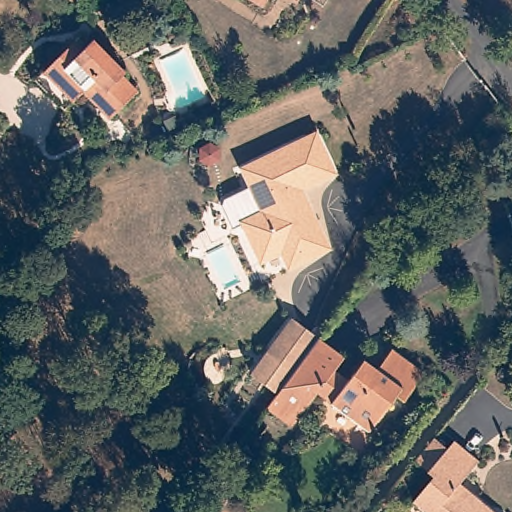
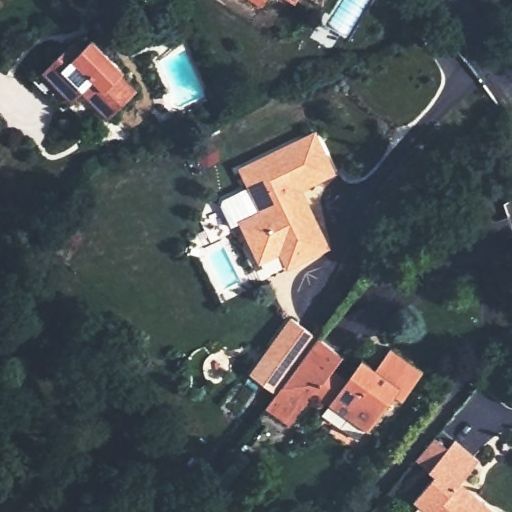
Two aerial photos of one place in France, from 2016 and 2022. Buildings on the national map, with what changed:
unchanged [(248,0),(262,0),(258,7),(248,0)]
unchanged [(290,0),(294,0),(293,2),(290,0)]
unchanged [(72,42),(78,47),(86,39),(123,73),(119,77),(133,92),(121,103),(65,50),(72,42)]
unchanged [(61,47),(65,50),(121,103),(105,119),(77,92),(69,100),(38,71),(61,47)]
unchanged [(279,252),(259,260),(240,218),(260,209),(255,197),(259,195),(254,186),(251,187),(241,167),(316,134),(334,173),(313,183),(310,177),(299,182),(326,247),(286,266),(279,252)]
unchanged [(285,311),(312,332),(297,351),(285,367),(257,346),(285,311)]
unchanged [(260,407),(273,390),(315,337),(341,356),(329,370),(341,379),(357,358),(372,371),(388,350),(421,374),(390,413),(384,409),(363,435),(311,395),(299,410),(286,427),(260,407)]
unchanged [(474,464),(452,491),(465,501),(469,496),(490,512),(424,512),(411,502),(428,481),(421,475),(407,465),(427,440),(440,450),(447,442),(474,464)]

